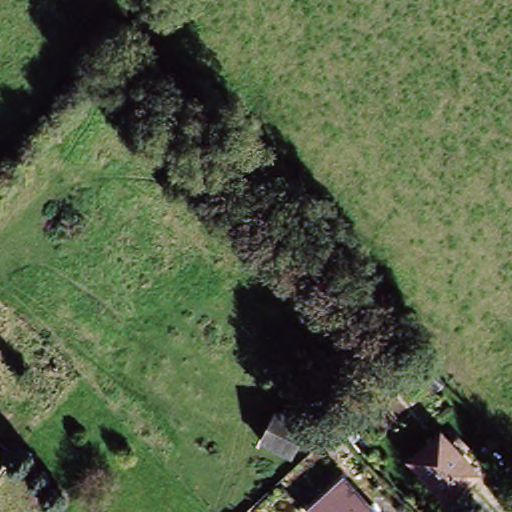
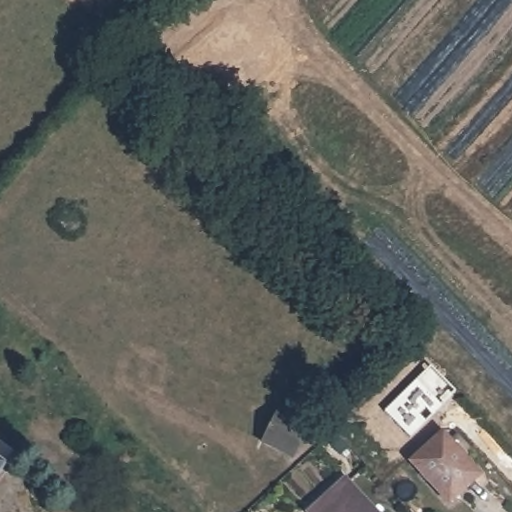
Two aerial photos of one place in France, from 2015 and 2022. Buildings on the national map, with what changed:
unchanged [(449,385),(438,396),(410,367),(420,357),(449,385)]
unchanged [(258,445),(273,416),(303,431),(290,460),(258,445)]
unchanged [(477,477),(447,505),(410,467),(442,437),(477,477)]
unchanged [(8,452),(0,464),(0,445),(8,452)]
unchanged [(1,465),(0,467),(0,464),(1,465)]
unchanged [(372,512),(315,512),(345,484),(372,512)]

